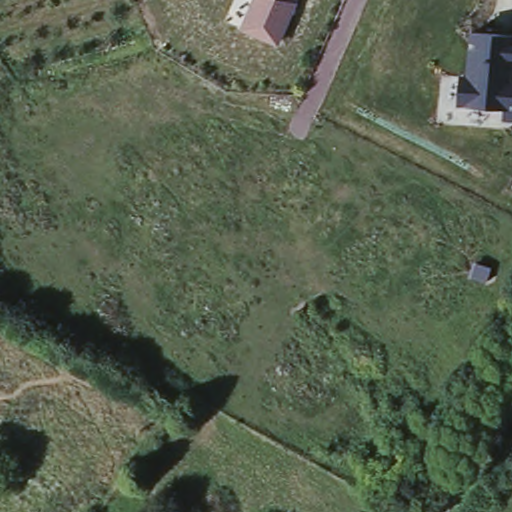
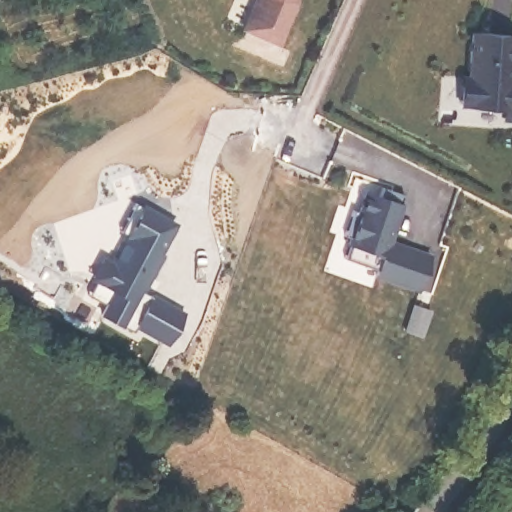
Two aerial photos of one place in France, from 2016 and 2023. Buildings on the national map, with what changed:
unchanged [(278,46),(241,28),(254,0),(300,0),(300,2),(278,46)]
unchanged [(503,120),(504,111),(457,106),(461,75),(467,75),(470,32),(512,35),(512,121),(503,120)]
new [(391,243),(434,257),(423,291),(341,259),(360,182),(402,199),(391,243)]
new [(94,278),(105,261),(112,265),(129,235),(121,231),(128,219),(137,203),(176,225),(161,252),(163,254),(143,292),(151,297),(153,295),(155,296),(154,297),(183,314),(184,312),(186,313),(169,344),(136,326),(133,332),(103,315),(108,306),(89,296),(98,281),(94,278)]

